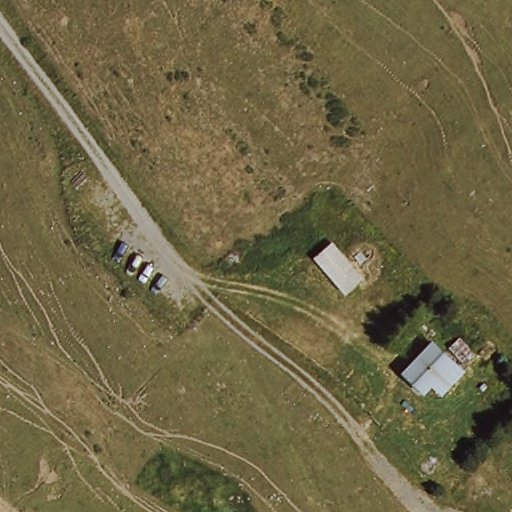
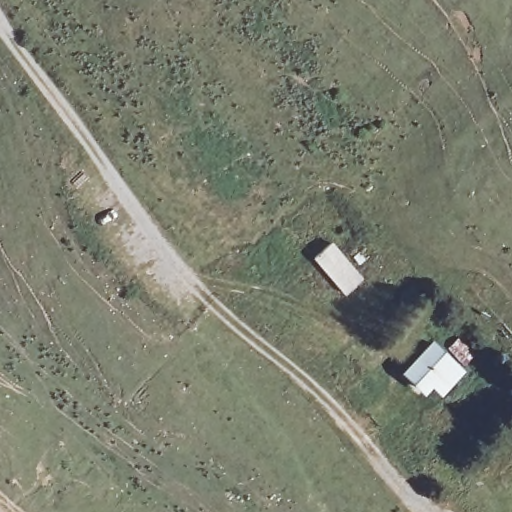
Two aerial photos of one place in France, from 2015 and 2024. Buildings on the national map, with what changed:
unchanged [(305,257),(327,239),(360,275),(340,298),(305,257)]
unchanged [(428,383),(420,395),(398,368),(425,336),(442,345),(453,335),(473,354),(442,396),(428,383)]

